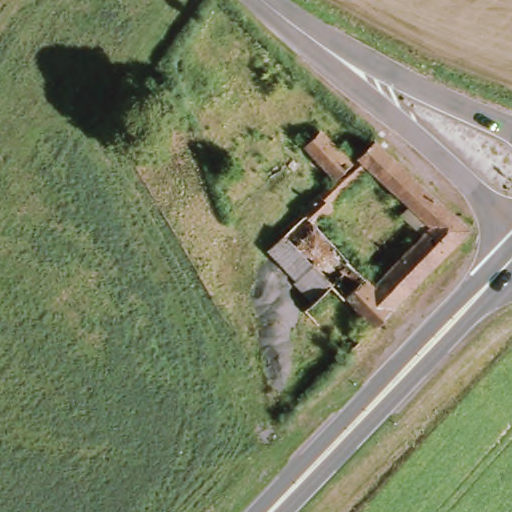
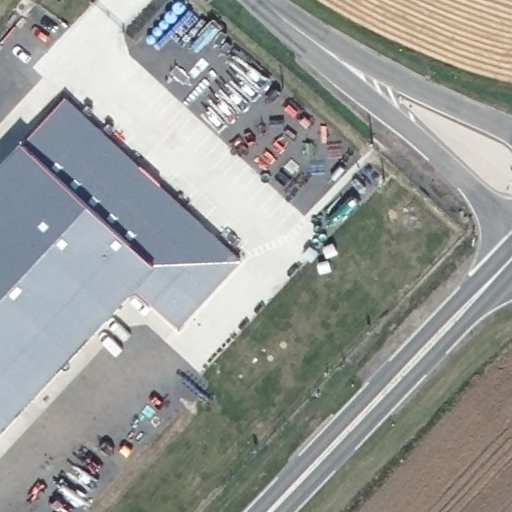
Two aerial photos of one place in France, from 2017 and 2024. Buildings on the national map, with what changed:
new [(72,96),(244,263),(180,329),(138,290),(158,266),(26,143),(72,96)]
demolished [(304,311),(312,305),(265,249),(286,233),(300,216),(316,196),(335,179),(302,145),(319,130),(348,159),(353,153),(370,138),(466,228),(391,308),(370,331),(349,354),(304,311)]
new [(138,290),(0,435),(0,171),(26,143),(158,266),(138,290)]

